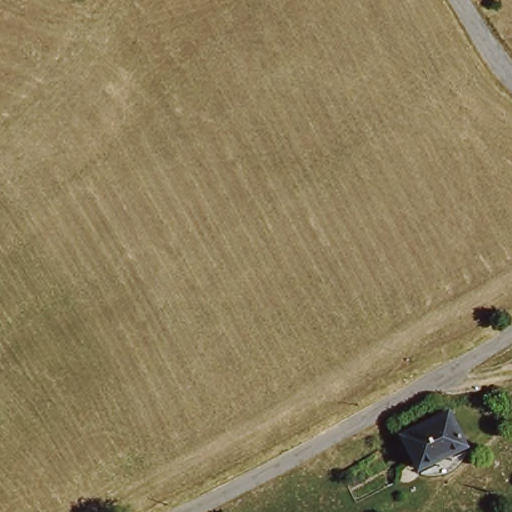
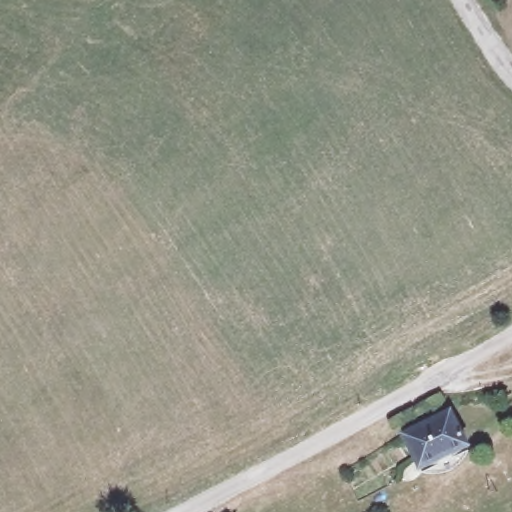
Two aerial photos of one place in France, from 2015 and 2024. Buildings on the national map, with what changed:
unchanged [(447,407),(463,441),(417,463),(401,430),(447,407)]

